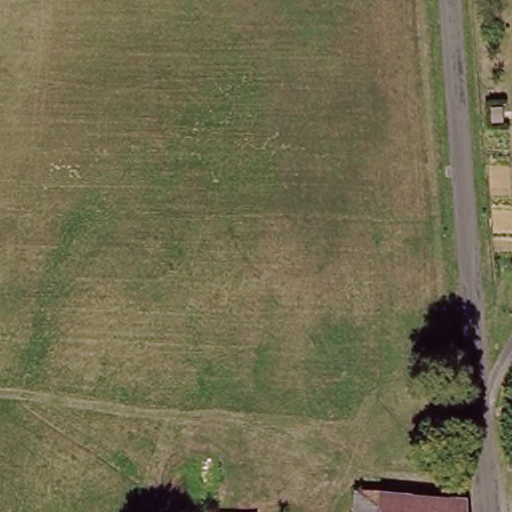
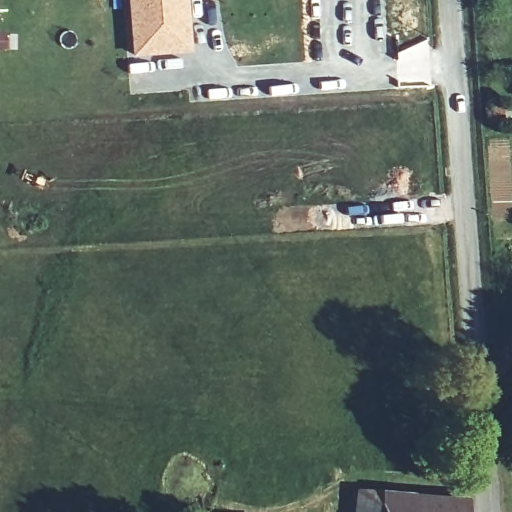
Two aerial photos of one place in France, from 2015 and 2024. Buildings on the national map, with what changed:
new [(190,51),(133,57),(127,0),(187,0),(190,51)]
unchanged [(464,493),(465,512),(348,512),(349,490),(464,493)]

